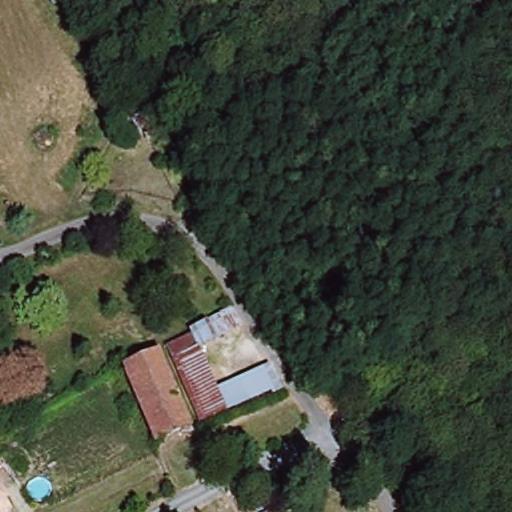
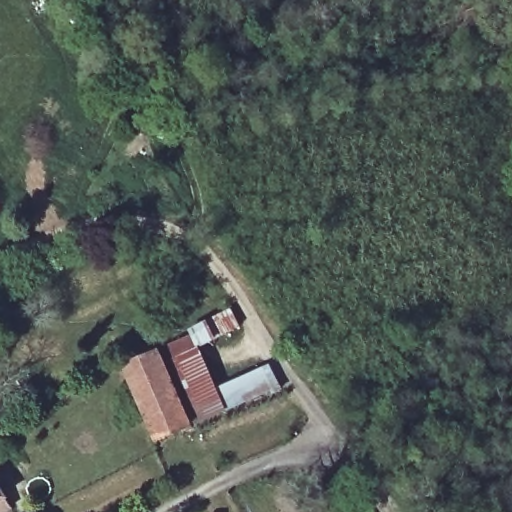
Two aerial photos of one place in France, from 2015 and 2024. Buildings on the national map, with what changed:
unchanged [(206,421),(178,357),(207,348),(225,386),(274,363),(288,387),(206,421)]
unchanged [(161,433),(133,369),(168,354),(196,418),(161,433)]
unchanged [(16,461),(11,465),(3,468),(0,463),(0,435),(16,461)]
unchanged [(2,486),(11,500),(0,507),(0,483),(2,486)]

